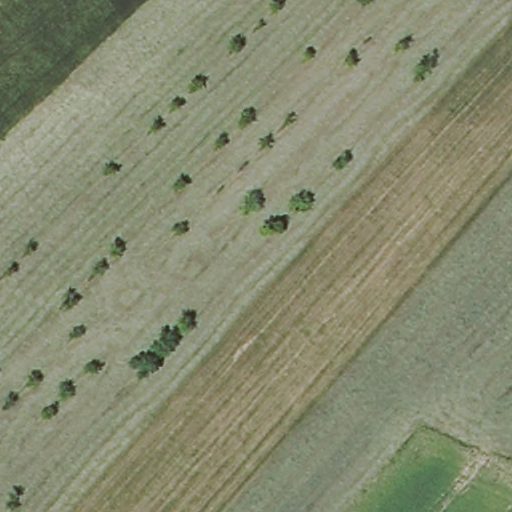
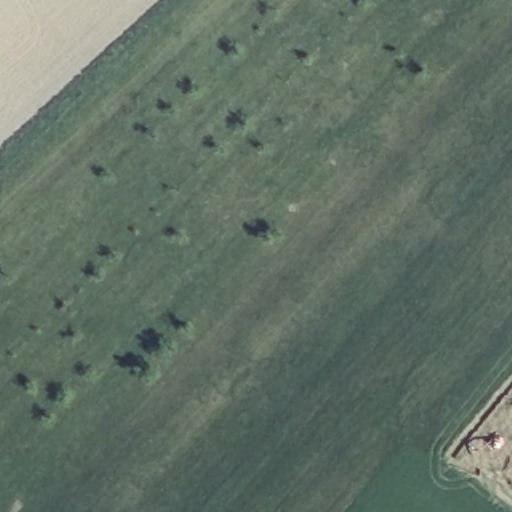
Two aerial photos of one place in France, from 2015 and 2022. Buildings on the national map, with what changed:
[]

